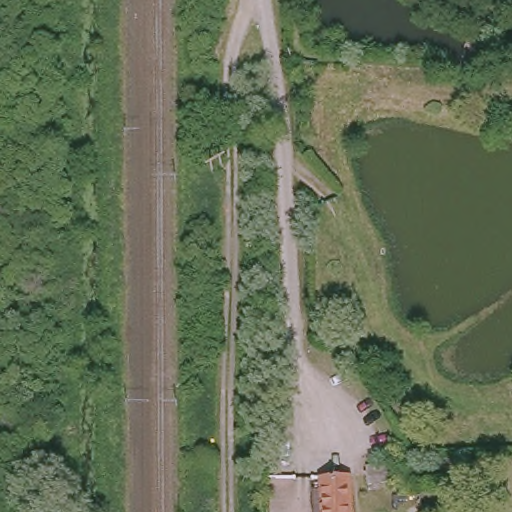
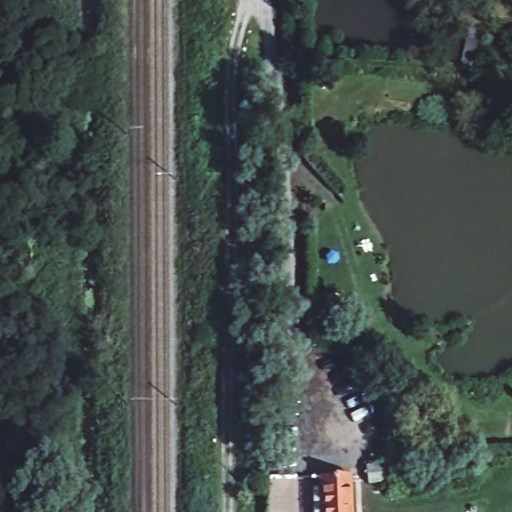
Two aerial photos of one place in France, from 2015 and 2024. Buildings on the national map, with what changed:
unchanged [(366,487),(366,472),(393,473),(393,487),(366,487)]
unchanged [(324,512),(323,477),(349,476),(350,512),(324,512)]

